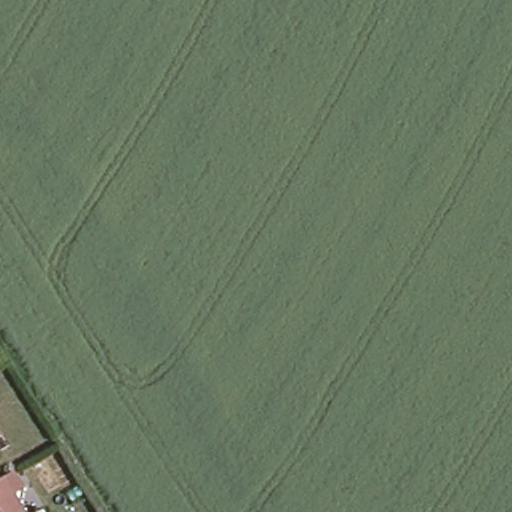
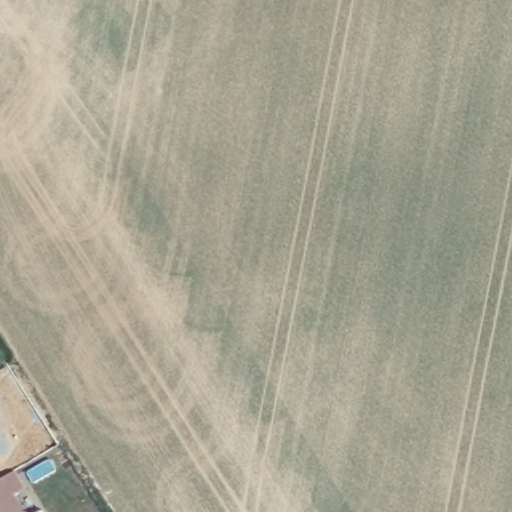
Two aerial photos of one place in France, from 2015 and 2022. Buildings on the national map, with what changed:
unchanged [(23,491),(11,497),(0,504),(0,481),(11,474),(23,491)]
unchanged [(0,512),(0,504),(11,497),(20,512),(0,512)]

